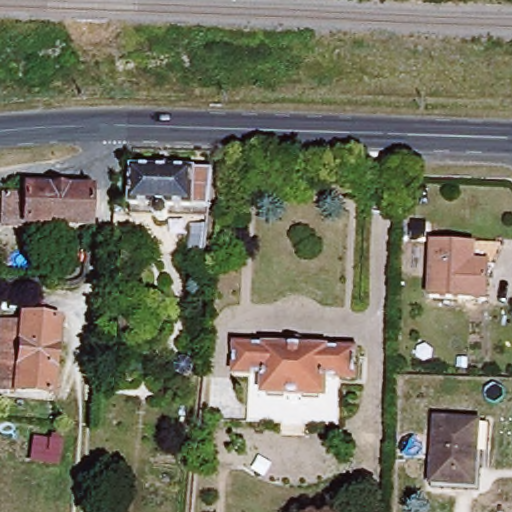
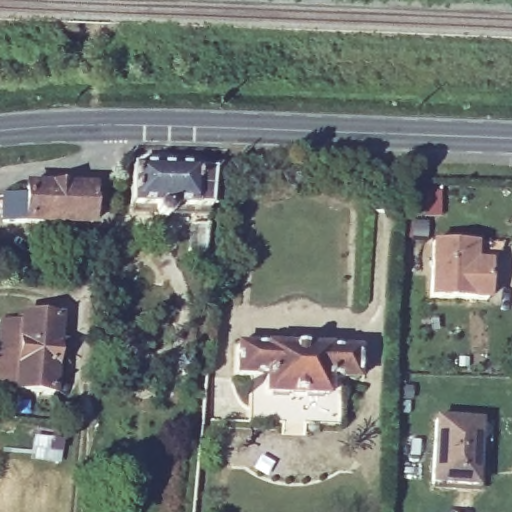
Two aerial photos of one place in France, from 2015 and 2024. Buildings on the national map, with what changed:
unchanged [(172,209),(168,213),(163,213),(159,209),(134,208),(134,201),(135,162),(217,165),(213,203),(212,211),(172,209)]
unchanged [(93,224),(6,221),(7,193),(28,194),(29,186),(57,187),(57,183),(77,183),(77,187),(94,188),(93,224)]
unchanged [(493,265),(487,264),(485,299),(428,297),(431,241),(471,243),(471,242),(501,243),(493,265)]
unchanged [(56,395),(0,390),(0,374),(5,318),(21,320),(22,315),(26,315),(26,314),(63,318),(56,395)]
unchanged [(360,379),(330,378),(330,396),(268,394),(269,376),(239,375),(240,345),(291,348),(292,344),(295,341),(298,339),(303,339),(306,341),(308,343),(310,348),(361,350),(360,379)]
unchanged [(190,371),(182,374),(175,369),(176,361),(184,357),(191,362),(190,371)]
unchanged [(479,492),(430,489),(430,484),(434,419),(477,421),(490,422),(488,446),(483,446),(480,487),(479,492)]

